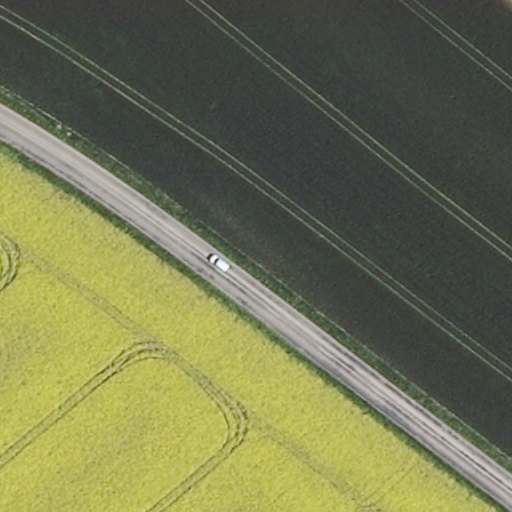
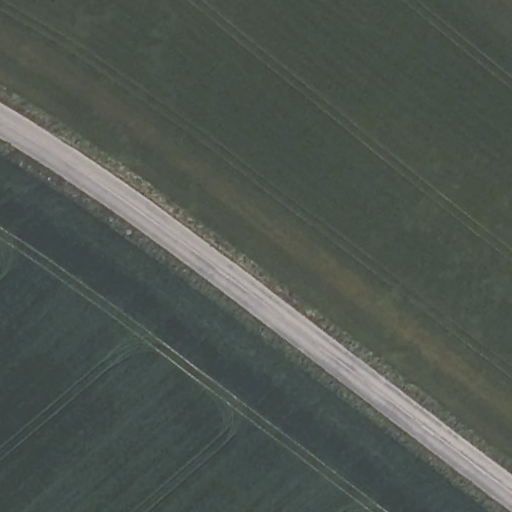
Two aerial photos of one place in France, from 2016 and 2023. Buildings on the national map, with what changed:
[]

